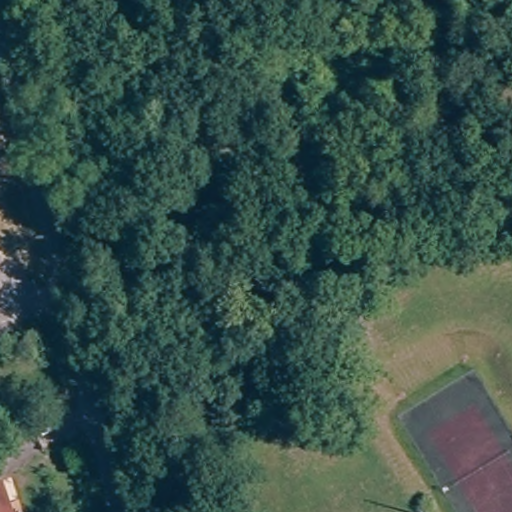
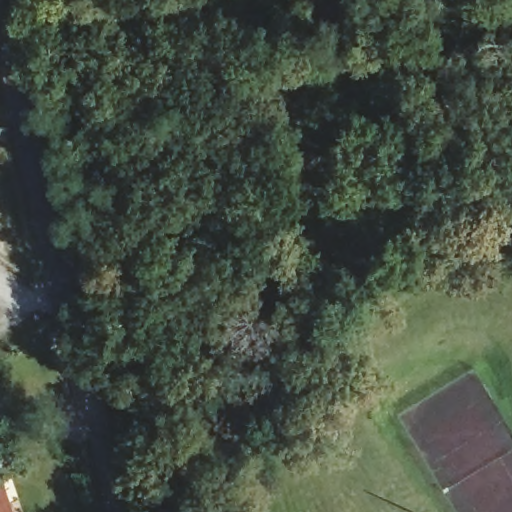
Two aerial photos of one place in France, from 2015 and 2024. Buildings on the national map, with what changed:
unchanged [(0,486),(11,512),(0,512),(0,486)]

